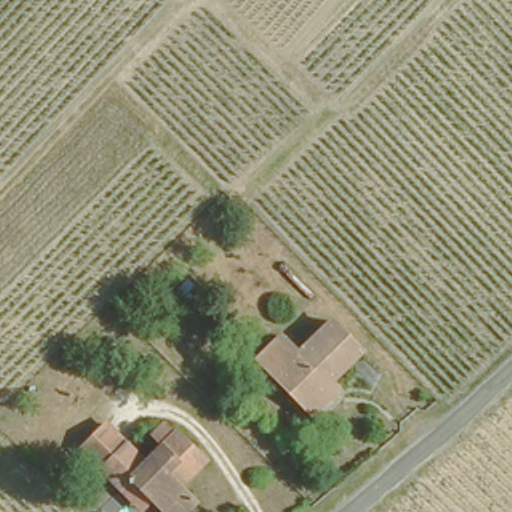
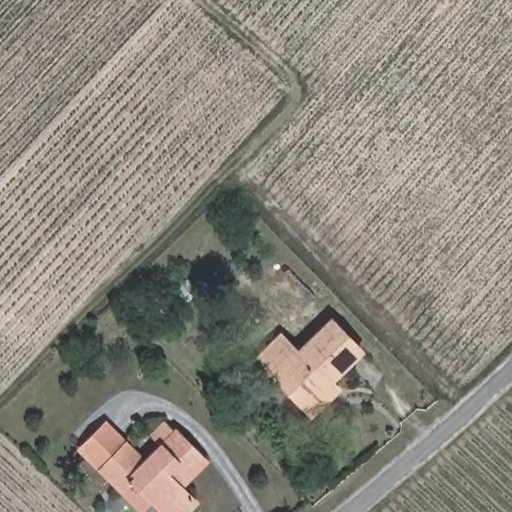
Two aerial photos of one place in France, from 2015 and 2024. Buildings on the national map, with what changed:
unchanged [(318,393),(307,404),(270,366),(253,348),(264,337),(276,325),(294,343),(327,312),(357,342),(326,372),(332,379),(322,390),(318,393)]
unchanged [(116,480),(75,440),(87,429),(100,415),(121,435),(140,455),(171,424),(201,455),(176,480),(191,496),(175,512),(168,512),(147,491),(137,501),(116,480)]

